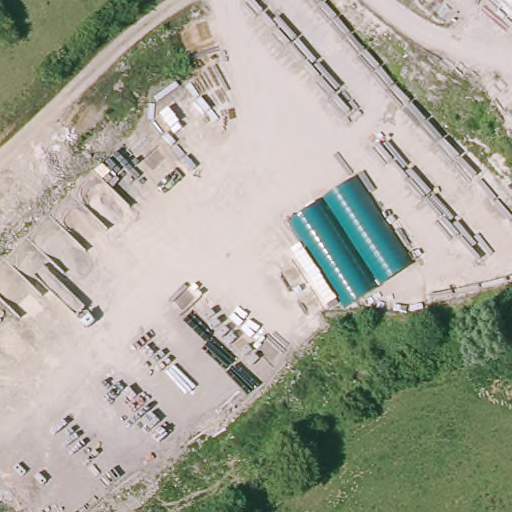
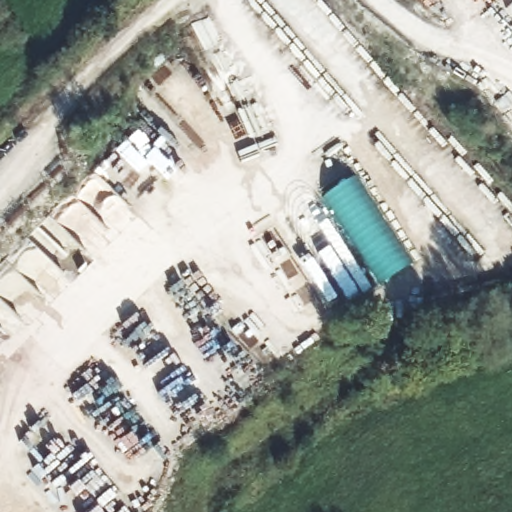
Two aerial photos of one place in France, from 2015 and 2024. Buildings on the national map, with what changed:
unchanged [(412,262),(379,284),(323,197),(355,176),(412,262)]
unchanged [(377,289),(343,309),(288,221),(320,201),(377,289)]

